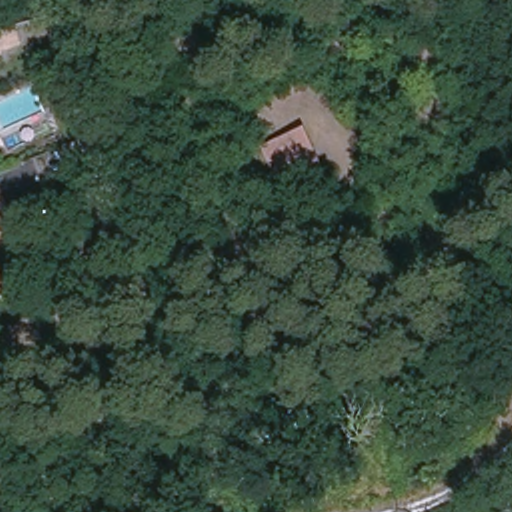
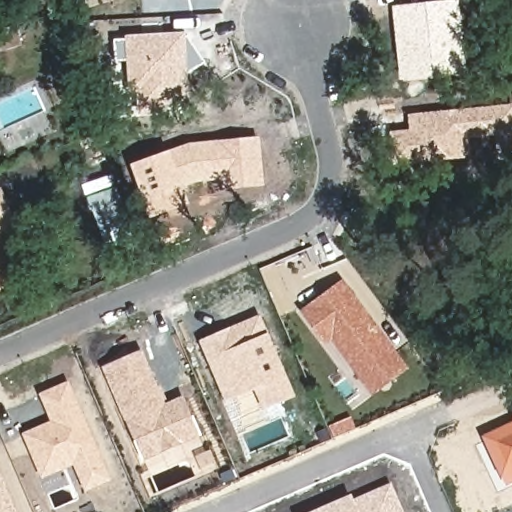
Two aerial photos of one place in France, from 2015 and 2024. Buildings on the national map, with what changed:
new [(452,0),(458,0),(466,74),(399,81),(392,6),(452,0)]
new [(140,91),(131,91),(130,61),(115,62),(114,40),(188,36),(205,63),(184,77),(186,104),(168,105),(168,101),(158,102),(158,111),(141,112),(140,91)]
new [(512,104),(512,158),(498,159),(495,137),(470,140),(472,158),(392,164),(390,132),(409,130),(408,114),(512,104)]
demolished [(324,173),(285,190),(267,148),(305,131),(324,173)]
new [(264,187),(223,191),(222,181),(201,181),(184,188),(190,203),(149,218),(139,199),(128,165),(169,150),(191,143),(259,136),(264,187)]
unchanged [(116,210),(124,228),(118,230),(109,210),(104,212),(95,190),(106,185),(116,210)]
new [(395,358),(365,380),(332,335),(326,339),(306,312),(341,286),(395,358)]
new [(229,331),(259,319),(292,395),(265,407),(256,386),(227,399),(203,342),(220,335),(229,331)]
new [(164,408),(183,400),(197,432),(143,455),(105,368),(140,354),(164,408)]
new [(108,479),(86,489),(75,462),(43,476),(26,435),(54,423),(43,396),(67,385),(108,479)]
demolished [(302,391),(314,420),(264,442),(251,413),(302,391)]
new [(509,482),(489,439),(512,428),(512,481),(509,482)]
new [(312,512),(351,496),(353,499),(391,483),(403,512),(312,512)]
new [(0,512),(0,484),(12,512),(0,512)]

